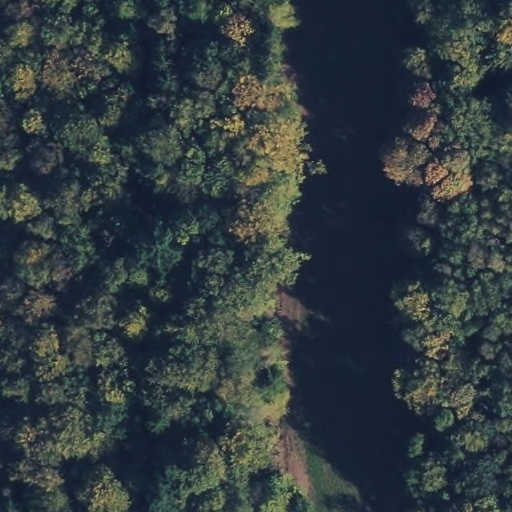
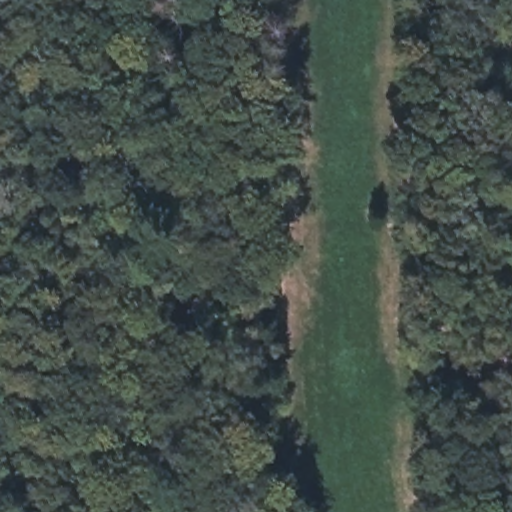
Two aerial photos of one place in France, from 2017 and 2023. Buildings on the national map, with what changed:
[]

